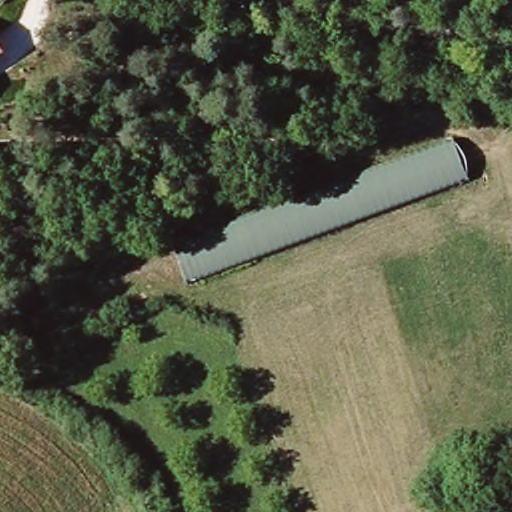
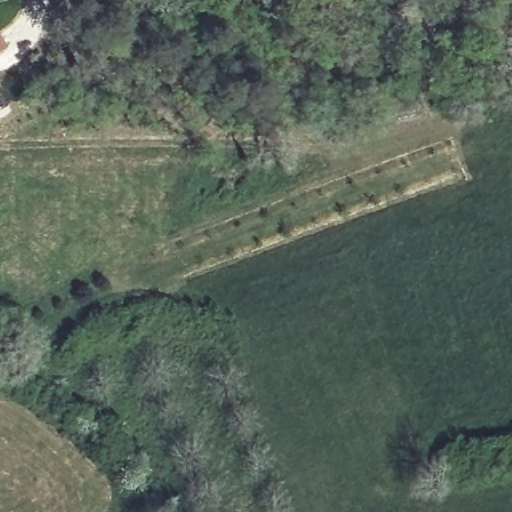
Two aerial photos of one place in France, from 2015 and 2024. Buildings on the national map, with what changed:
unchanged [(5,51),(0,54),(0,42),(5,51)]
demolished [(195,283),(177,241),(457,140),(475,181),(195,283)]

